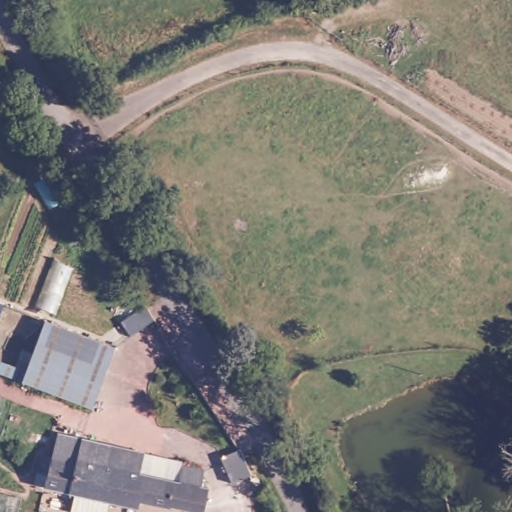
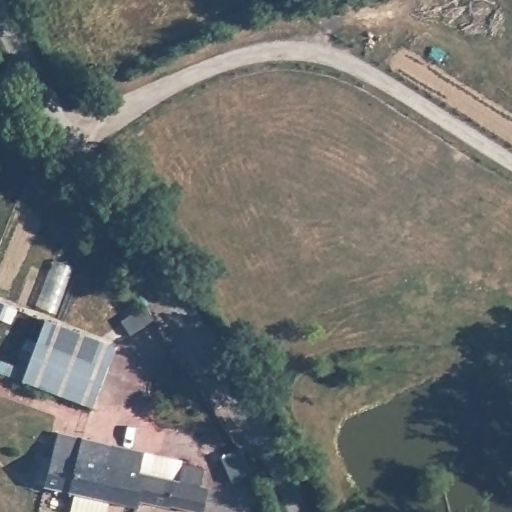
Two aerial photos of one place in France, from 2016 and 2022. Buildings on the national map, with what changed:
unchanged [(0,313),(0,303),(3,304),(0,313)]
unchanged [(155,324),(130,341),(121,328),(146,310),(155,324)]
unchanged [(45,325),(116,353),(92,413),(22,386),(0,378),(0,365),(26,375),(45,325)]
unchanged [(178,476),(182,459),(204,464),(205,466),(201,481),(209,483),(203,508),(171,501),(170,503),(140,496),(138,503),(44,481),(47,468),(36,464),(41,448),(52,451),(55,440),(57,428),(82,433),(137,446),(144,447),(145,449),(139,468),(178,476)]

